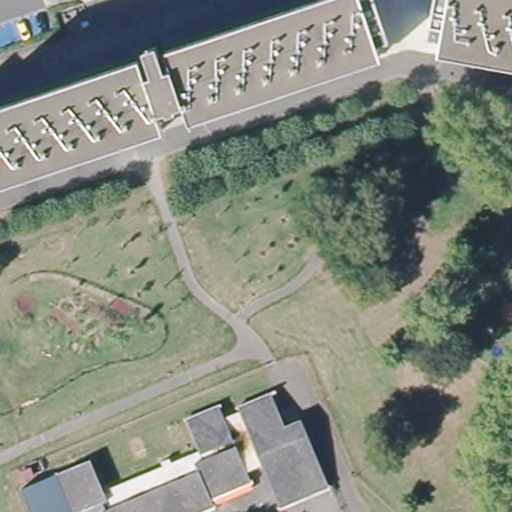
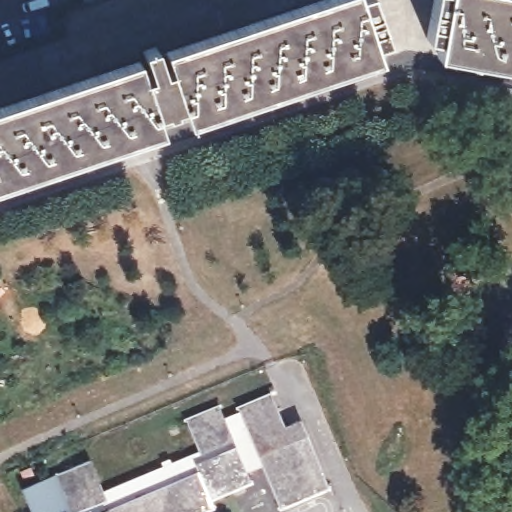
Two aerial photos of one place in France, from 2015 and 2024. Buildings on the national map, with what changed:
unchanged [(360,2),(369,0),(371,0),(380,24),(386,22),(394,44),(386,47),(385,43),(376,46),(380,59),(189,123),(184,109),(178,111),(180,116),(167,120),(164,115),(160,117),(164,132),(0,186),(0,112),(10,109),(9,105),(23,100),(24,104),(37,99),(36,96),(50,92),(51,95),(141,65),(148,83),(152,81),(143,53),(156,49),(166,77),(171,75),(165,56),(332,0),(360,0),(360,2)]
unchanged [(436,49),(438,38),(430,36),(429,39),(418,37),(420,27),(413,25),(416,8),(431,13),(433,0),(512,0),(512,63),(436,49)]
unchanged [(250,471),(254,481),(214,497),(218,506),(205,512),(32,512),(22,489),(90,461),(103,491),(199,451),(187,419),(221,405),(227,417),(240,411),(239,408),(272,394),(286,425),(302,418),(333,486),(282,508),(263,465),(250,471)]

